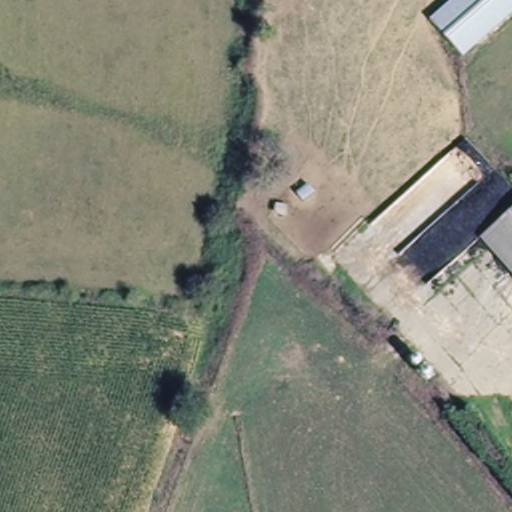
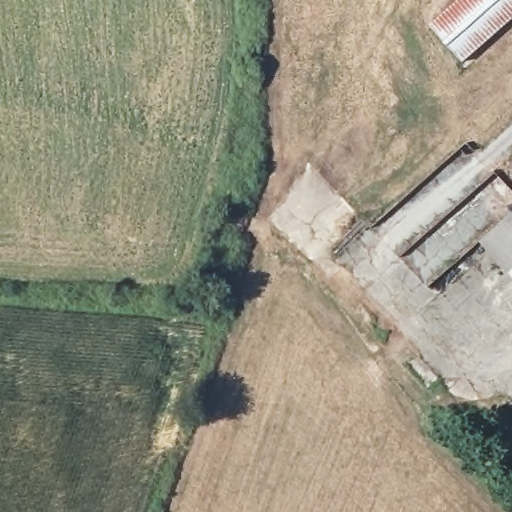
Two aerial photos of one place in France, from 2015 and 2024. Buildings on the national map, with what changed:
unchanged [(455,0),(512,0),(512,16),(461,61),(428,25),(455,0)]
unchanged [(512,216),(512,277),(482,244),(512,216)]

